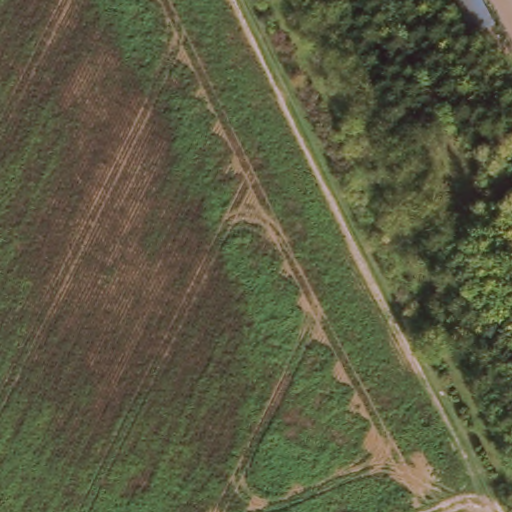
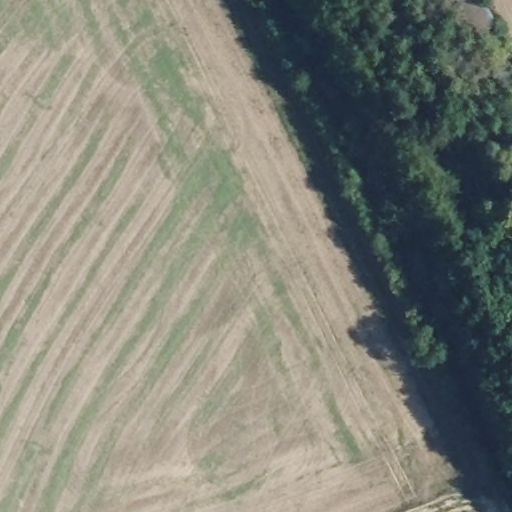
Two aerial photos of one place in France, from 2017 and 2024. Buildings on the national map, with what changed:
unchanged [(475,38),(453,1),(455,0),(481,0),(496,28),(475,38)]

